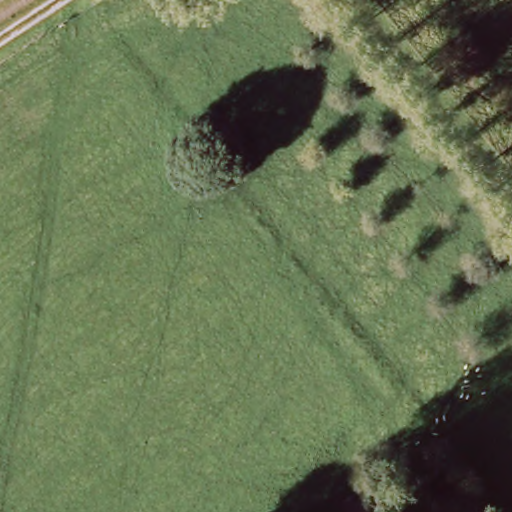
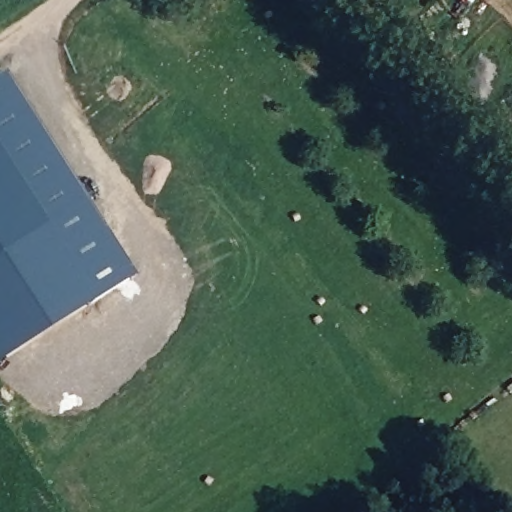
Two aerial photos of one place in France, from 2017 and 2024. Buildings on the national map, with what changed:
new [(0,362),(0,76),(125,273),(12,344),(17,351),(0,362)]

